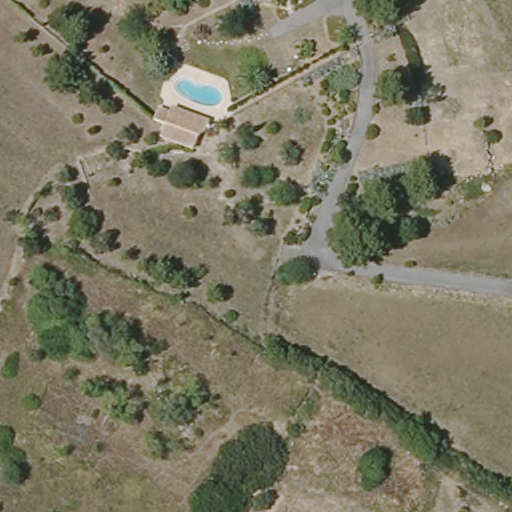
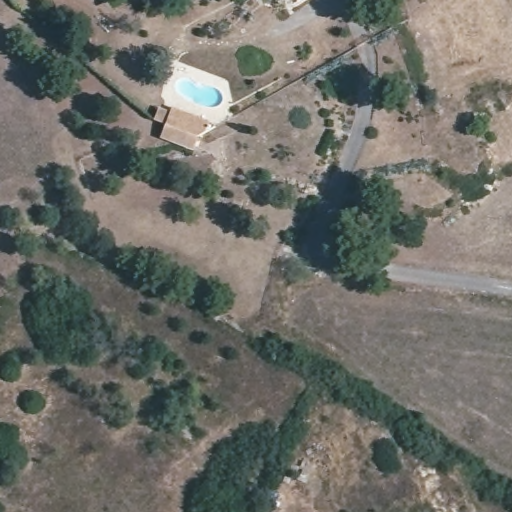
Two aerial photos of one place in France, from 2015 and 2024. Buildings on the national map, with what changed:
unchanged [(165,125),(156,121),(161,107),(172,111),(173,108),(211,122),(207,132),(199,138),(195,150),(161,140),(165,125)]

